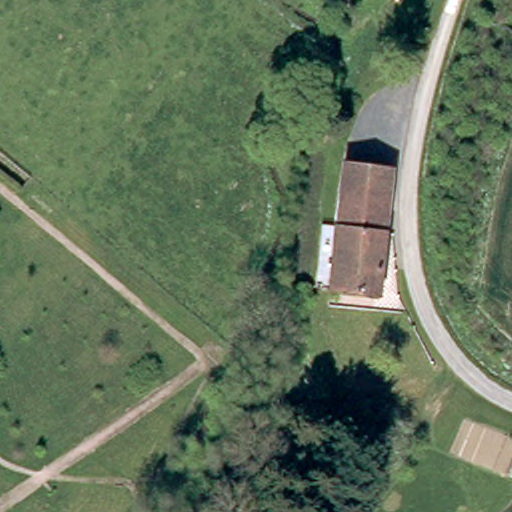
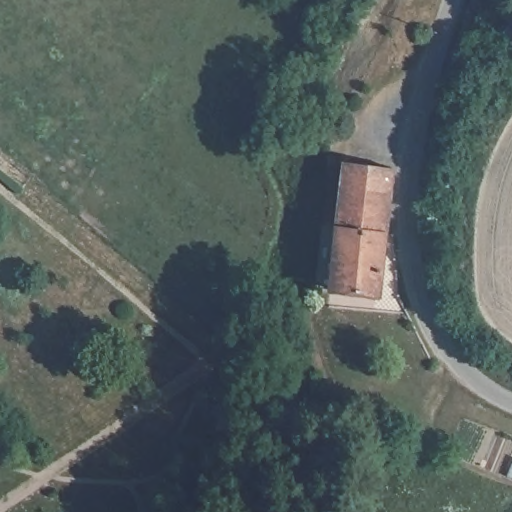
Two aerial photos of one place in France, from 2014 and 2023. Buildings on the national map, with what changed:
unchanged [(327,292),(336,191),(342,161),(387,172),(380,234),(374,298),(327,292)]

